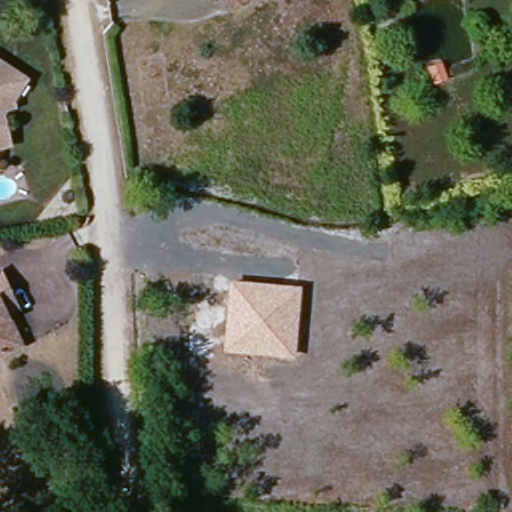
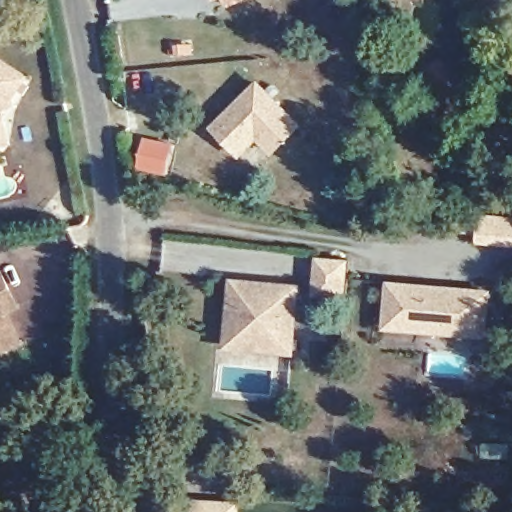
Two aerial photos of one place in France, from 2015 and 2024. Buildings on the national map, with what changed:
unchanged [(229,4),(227,0),(239,0),(229,4)]
unchanged [(30,78),(2,113),(5,147),(0,147),(0,57),(30,78)]
new [(304,125),(274,156),(258,141),(241,159),(209,127),(258,80),(304,125)]
new [(138,170),(145,137),(174,145),(167,176),(138,170)]
new [(479,215),(512,217),(512,248),(477,246),(479,215)]
new [(315,261),(342,262),(339,298),(311,296),(315,261)]
unchanged [(6,286),(15,305),(0,313),(0,272),(6,286)]
unchanged [(301,287),(295,360),(223,352),(230,281),(301,287)]
new [(394,285),(484,292),(480,336),(418,331),(419,322),(391,320),(394,285)]
unchanged [(15,347),(0,354),(0,315),(15,347)]
unchanged [(72,411),(77,437),(62,440),(58,413),(72,411)]
new [(240,502),(240,512),(188,512),(190,497),(240,502)]

